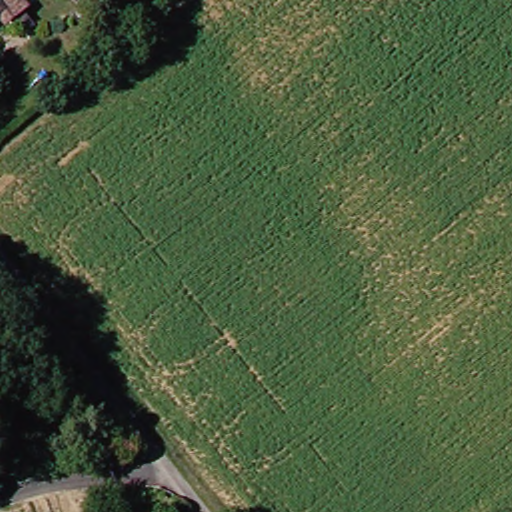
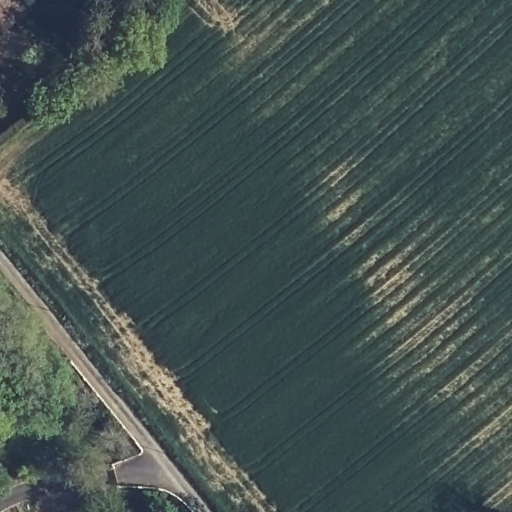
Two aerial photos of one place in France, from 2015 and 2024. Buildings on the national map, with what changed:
unchanged [(7,15),(0,21),(0,6),(7,15)]

